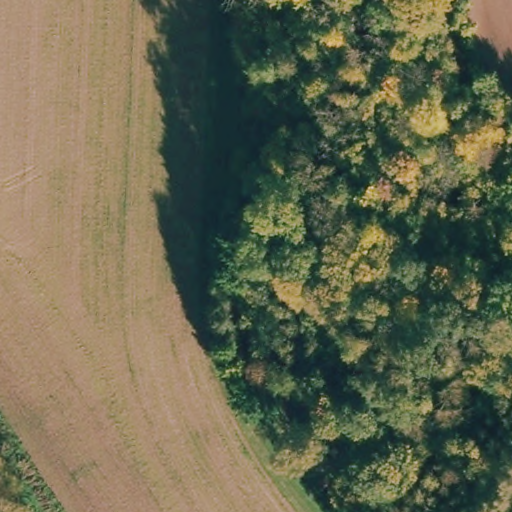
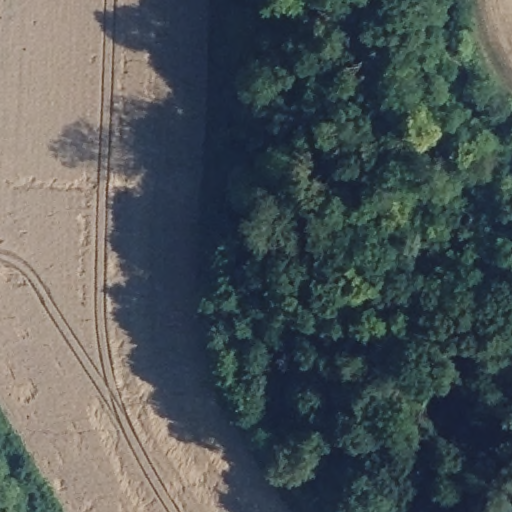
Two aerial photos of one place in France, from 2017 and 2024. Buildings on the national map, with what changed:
unchanged [(330,416),(365,450),(348,468),(315,430),(330,416)]

